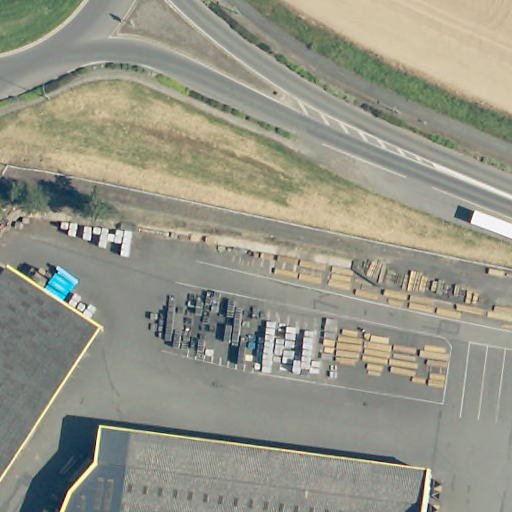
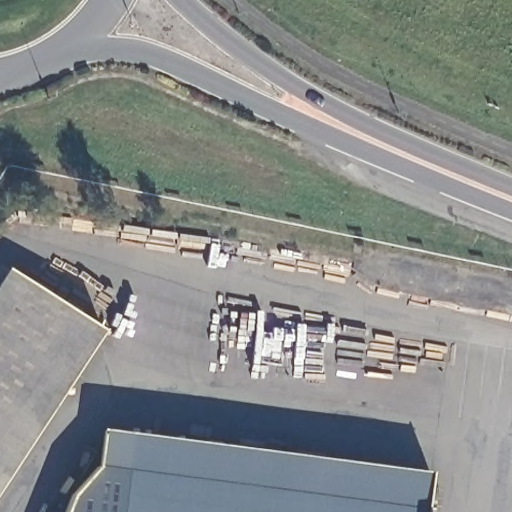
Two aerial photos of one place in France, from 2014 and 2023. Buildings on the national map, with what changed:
unchanged [(103,329),(0,486),(0,282),(9,268),(103,329)]
unchanged [(431,473),(426,509),(127,471),(132,435),(431,473)]
unchanged [(97,467),(127,471),(426,509),(426,512),(66,512),(72,496),(97,467)]

